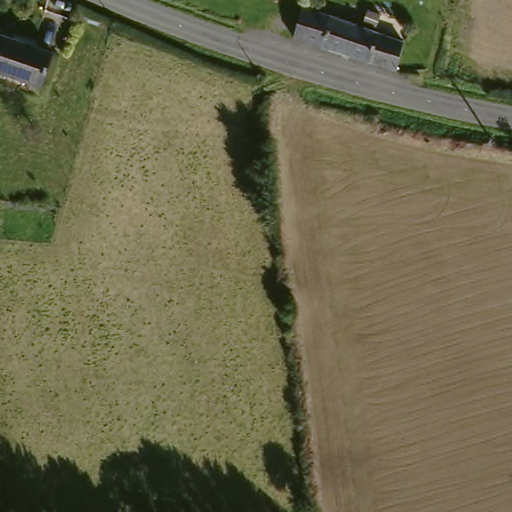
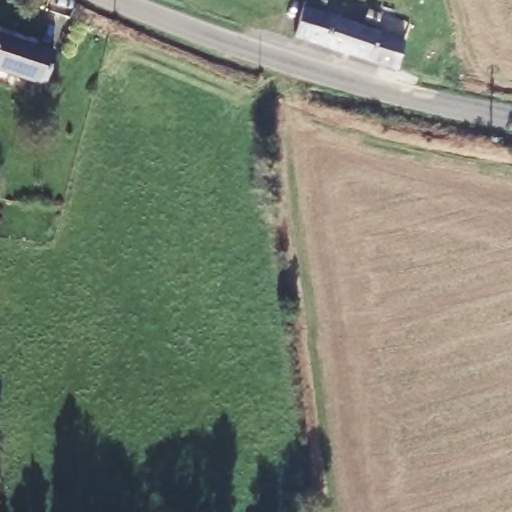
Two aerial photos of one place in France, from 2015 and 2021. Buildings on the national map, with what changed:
unchanged [(409,42),(400,71),(297,37),(308,9),(409,42)]
unchanged [(0,66),(0,35),(53,51),(39,77),(0,66)]

